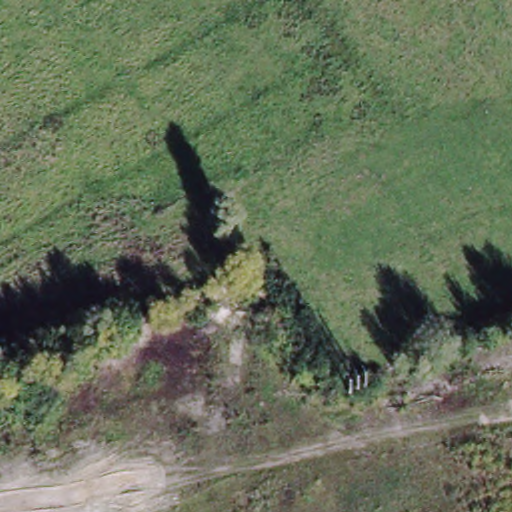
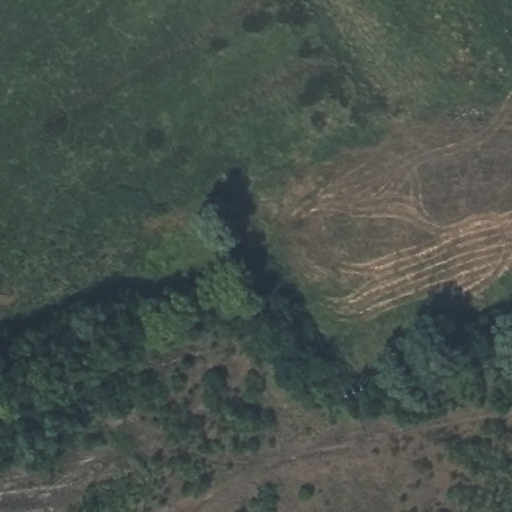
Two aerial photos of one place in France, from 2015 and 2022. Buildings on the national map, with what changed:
[]

